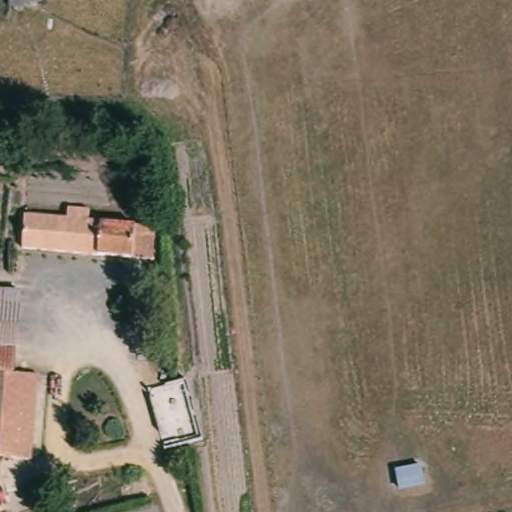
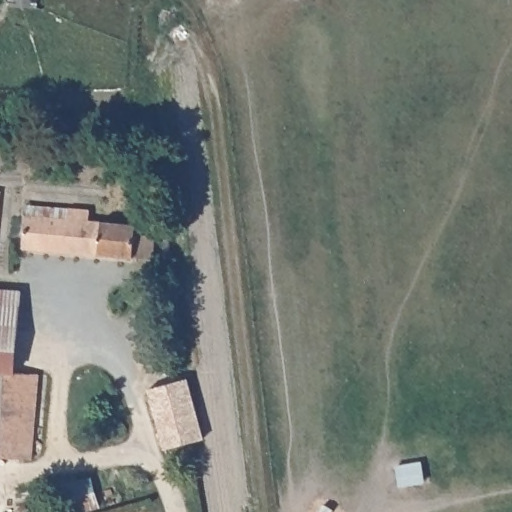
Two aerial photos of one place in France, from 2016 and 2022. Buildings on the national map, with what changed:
unchanged [(44,222),(45,205),(78,208),(77,224),(156,231),(154,251),(152,263),(25,253),(26,220),(44,222)]
unchanged [(15,372),(0,371),(0,288),(19,288),(15,372)]
unchanged [(38,373),(31,460),(0,458),(0,371),(15,372),(38,373)]
new [(187,377),(205,438),(164,448),(147,387),(187,377)]
demolished [(182,385),(199,447),(167,455),(147,393),(182,385)]

